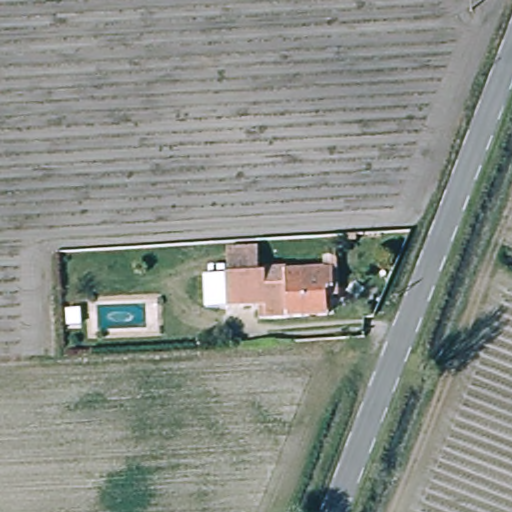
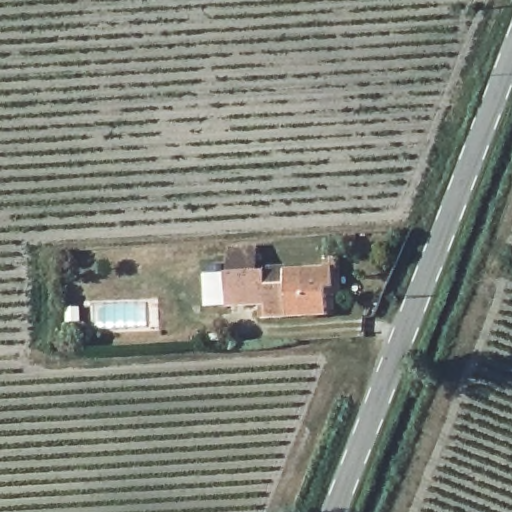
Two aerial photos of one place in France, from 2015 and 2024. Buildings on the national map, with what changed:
unchanged [(335,256),(338,294),(327,294),(327,316),(259,319),(258,305),(226,307),(225,273),(263,271),(264,283),(285,283),(285,271),(322,268),(322,255),(335,256)]

